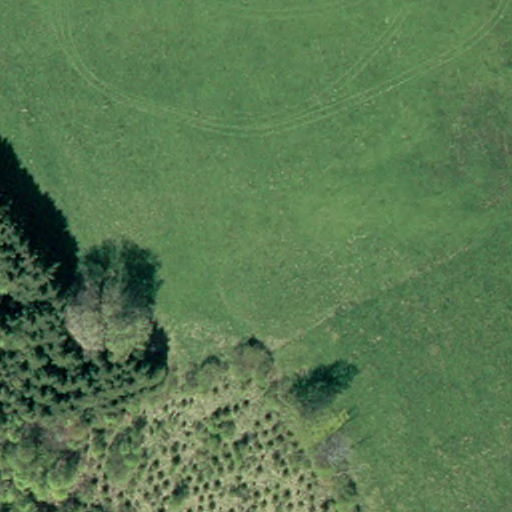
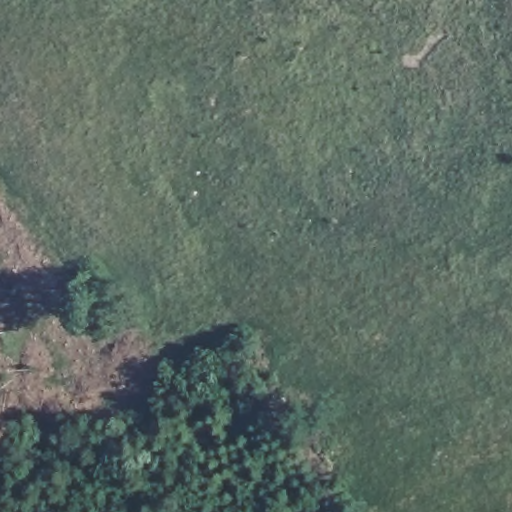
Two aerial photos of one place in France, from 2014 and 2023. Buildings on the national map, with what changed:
[]

